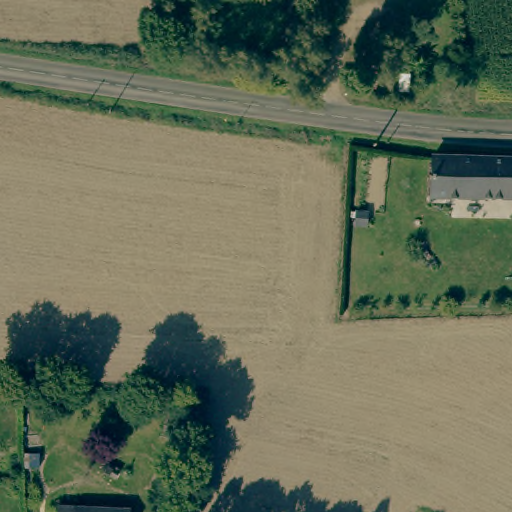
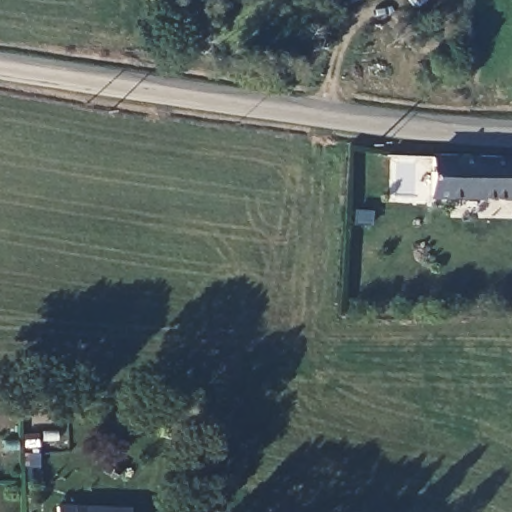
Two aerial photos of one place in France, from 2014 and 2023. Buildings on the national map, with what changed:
unchanged [(512,203),(434,200),(429,199),(430,163),(512,165),(512,203)]

